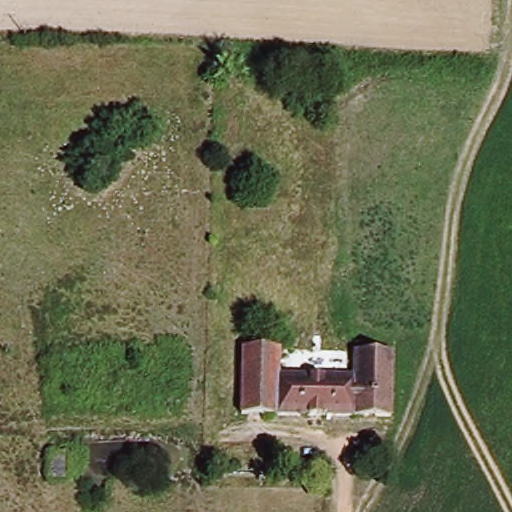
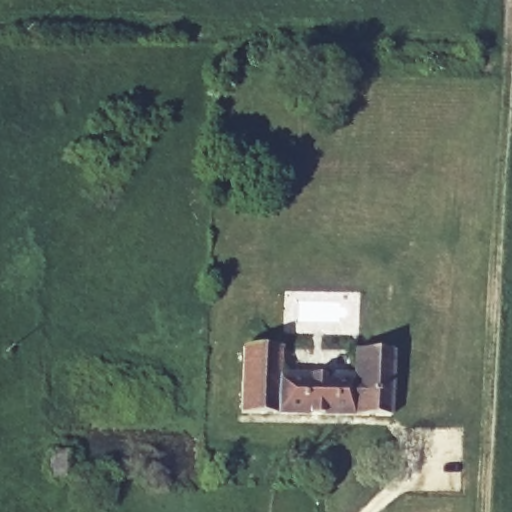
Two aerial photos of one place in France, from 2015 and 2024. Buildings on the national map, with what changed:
unchanged [(365,414),(240,413),(241,349),(280,350),(280,378),(365,379),(365,414)]
unchanged [(366,351),(406,351),(405,415),(365,414),(365,379),(366,351)]
unchanged [(56,460),(65,459),(65,496),(49,496),(48,460),(56,460)]

